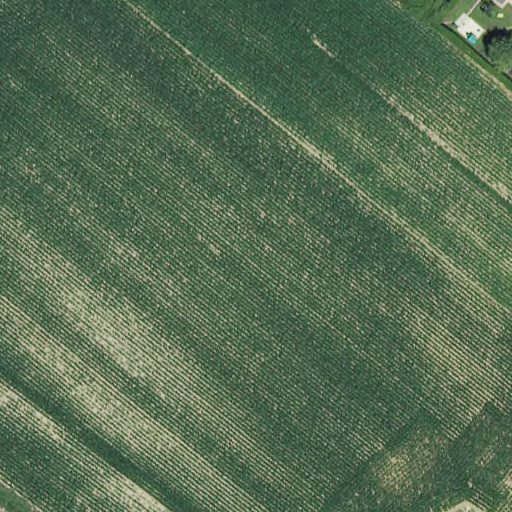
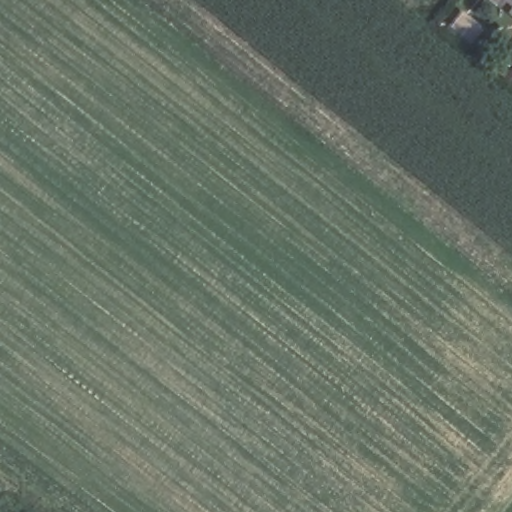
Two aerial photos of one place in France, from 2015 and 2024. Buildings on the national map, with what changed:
unchanged [(500,0),(511,0),(508,6),(500,0)]

